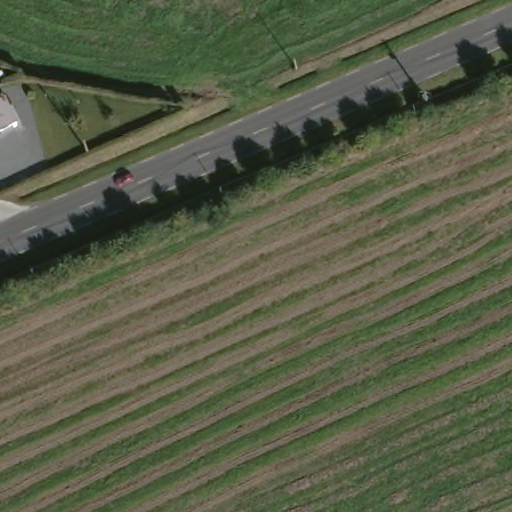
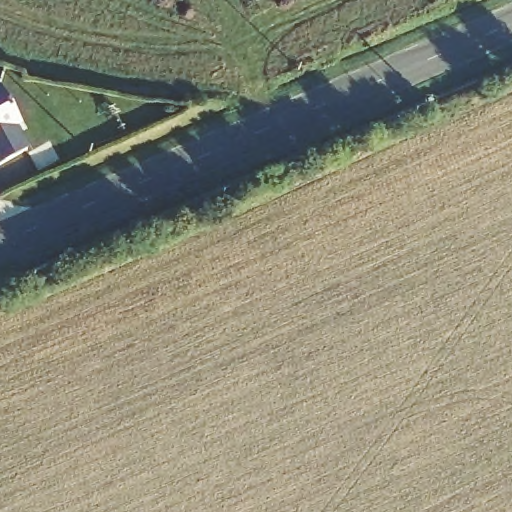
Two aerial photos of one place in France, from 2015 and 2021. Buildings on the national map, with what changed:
unchanged [(3,92),(27,125),(0,143),(0,94),(3,92)]

